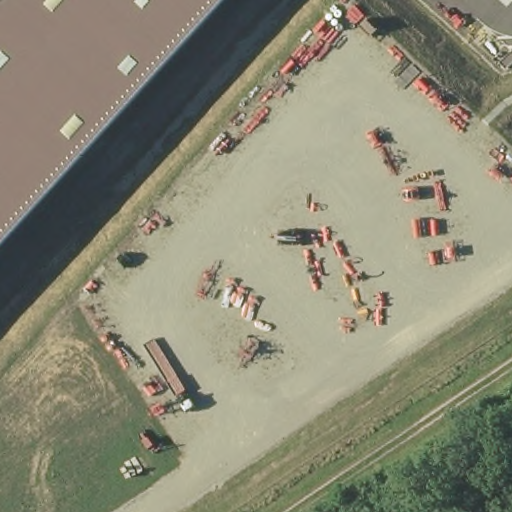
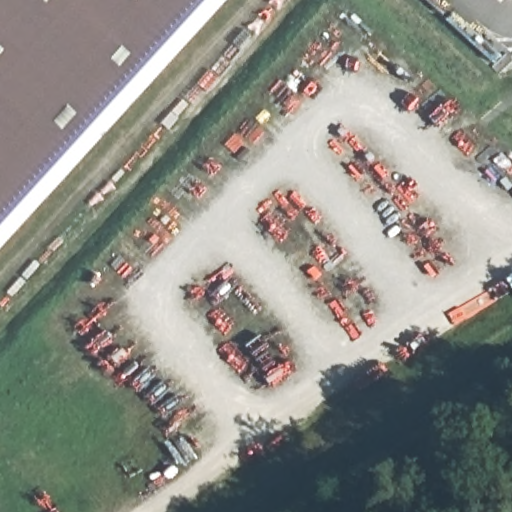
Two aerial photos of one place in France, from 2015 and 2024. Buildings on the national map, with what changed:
unchanged [(0,0),(222,0),(0,244),(0,0)]
unchanged [(512,0),(512,3),(510,5),(504,0),(512,0)]

